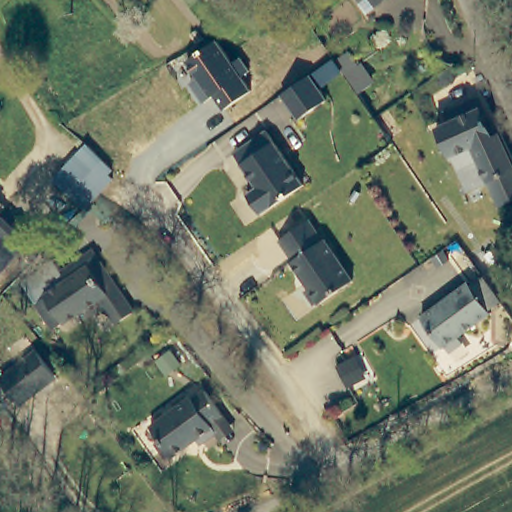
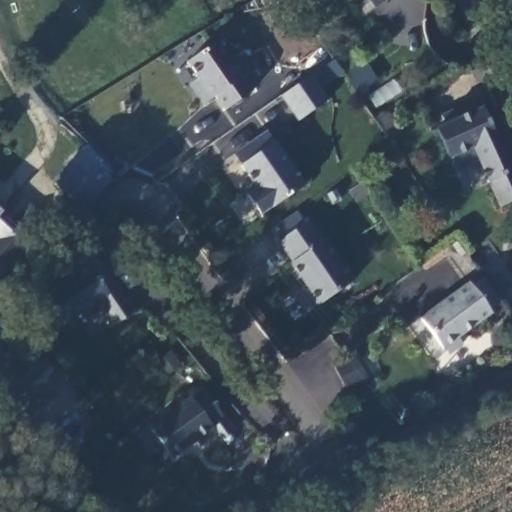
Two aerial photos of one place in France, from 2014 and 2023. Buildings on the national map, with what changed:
unchanged [(354,0),(363,0),(357,4),(354,0)]
unchanged [(367,0),(384,0),(373,7),(367,0)]
unchanged [(224,111),(214,95),(204,103),(190,84),(197,78),(187,63),(218,41),(234,63),(242,58),(251,71),(243,78),(252,90),(224,111)]
unchanged [(358,94),(344,73),(320,90),(327,99),(299,119),(281,95),(311,75),(334,59),(336,62),(350,52),(360,66),(363,64),(375,83),(358,94)]
unchanged [(497,138),(512,169),(512,204),(497,211),(475,164),(456,173),(450,160),(446,161),(433,133),(444,128),(439,119),(474,103),(491,140),(497,138)]
unchanged [(261,215),(247,195),(258,189),(243,165),(233,152),(265,131),(274,142),(304,185),(261,215)]
unchanged [(60,181),(97,142),(124,175),(104,196),(90,210),(60,181)]
unchanged [(4,210),(0,215),(0,206),(4,210)]
unchanged [(1,213),(30,240),(0,276),(0,215),(1,213)]
unchanged [(312,222),(326,242),(328,241),(356,283),(323,305),(321,303),(317,306),(308,292),(312,289),(294,263),(297,262),(283,241),(312,222)]
unchanged [(39,306),(50,298),(49,296),(71,282),(65,273),(68,271),(88,258),(97,252),(110,271),(138,314),(119,326),(103,302),(96,307),(68,326),(67,324),(56,332),(39,306)]
unchanged [(461,342),(464,346),(445,360),(419,325),(467,290),(468,292),(481,283),(500,309),(488,318),(489,321),(461,342)]
unchanged [(35,363),(51,384),(16,409),(0,388),(35,363)]
unchanged [(218,439),(213,432),(199,442),(196,444),(192,439),(168,456),(167,454),(162,457),(151,442),(156,439),(147,425),(172,408),(188,396),(189,398),(202,390),(219,414),(230,430),(218,439)]

